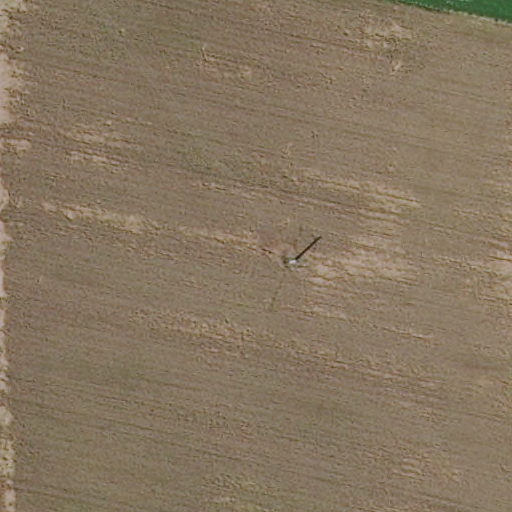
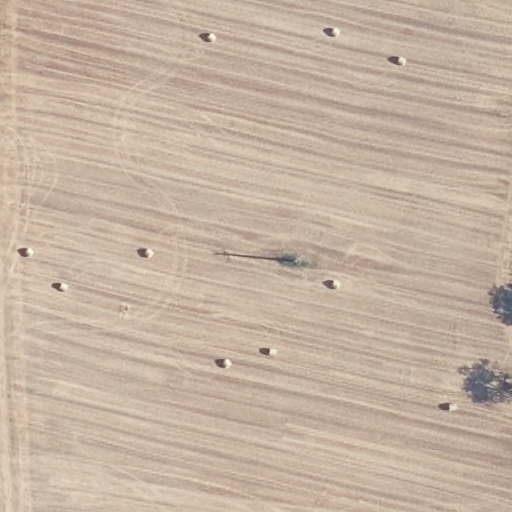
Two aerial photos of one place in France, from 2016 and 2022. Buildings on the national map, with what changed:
[]

